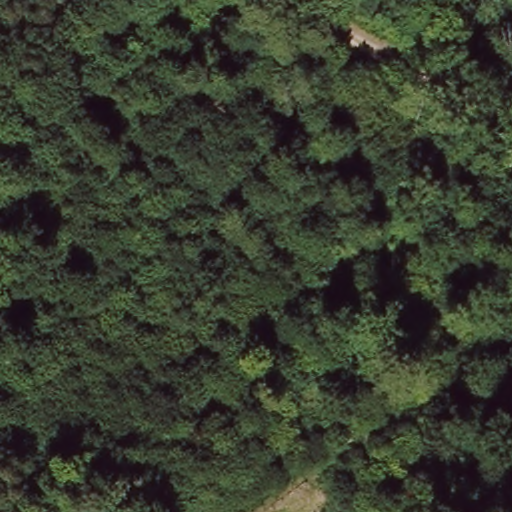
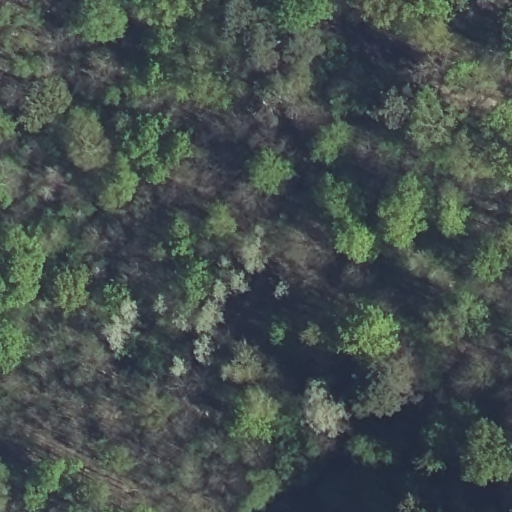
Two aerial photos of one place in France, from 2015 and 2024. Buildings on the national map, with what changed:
[]

